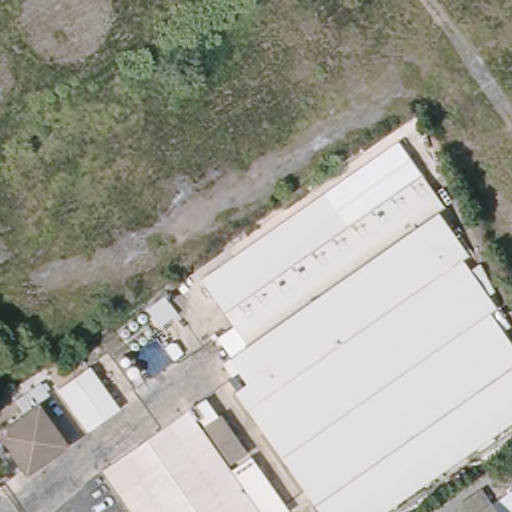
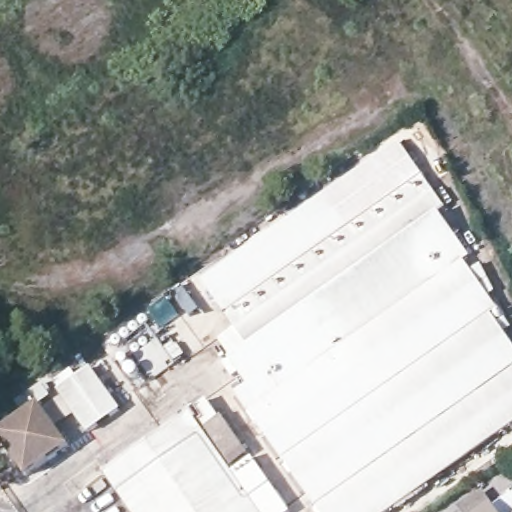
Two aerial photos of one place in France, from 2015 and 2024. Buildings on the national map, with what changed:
unchanged [(438,212),(473,258),(467,264),(498,309),(495,315),(512,339),(512,428),(392,512),(319,512),(240,392),(244,386),(229,364),(247,348),(226,317),(232,312),(210,282),(419,135),(436,165),(421,179),(443,206),(438,212)]
unchanged [(60,390),(93,370),(122,411),(88,434),(60,390)]
unchanged [(0,424),(30,402),(60,445),(18,474),(0,449),(0,424)]
unchanged [(255,450),(292,507),(286,512),(137,512),(105,465),(191,402),(234,463),(255,450)]
unchanged [(497,512),(474,512),(490,502),(497,512)]

